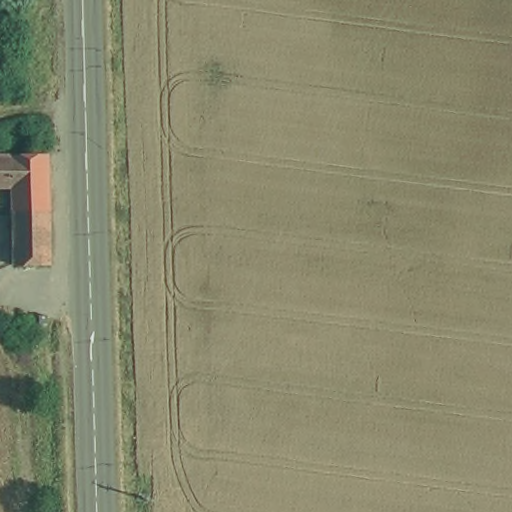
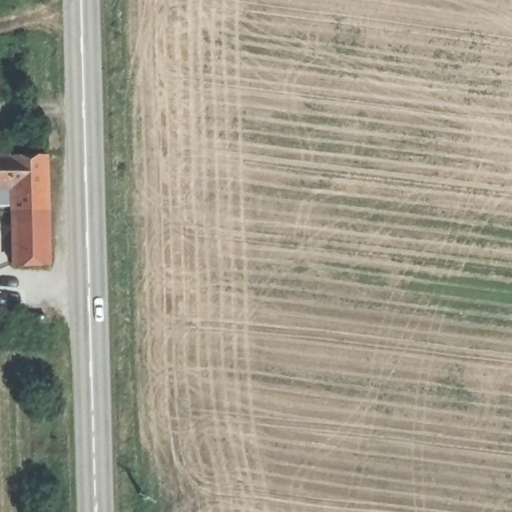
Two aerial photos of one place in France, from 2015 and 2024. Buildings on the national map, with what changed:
unchanged [(15,263),(16,185),(0,184),(0,152),(49,151),(51,262),(15,263)]

